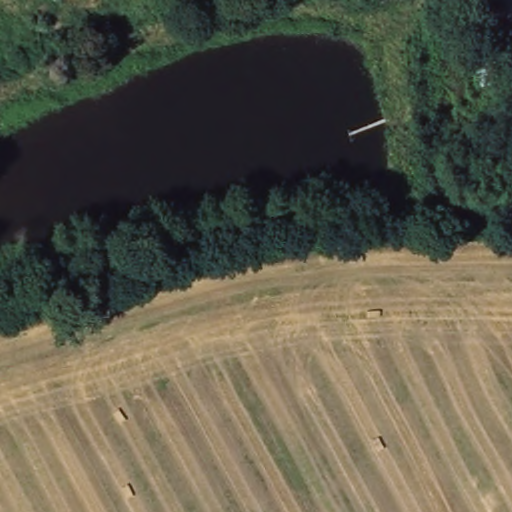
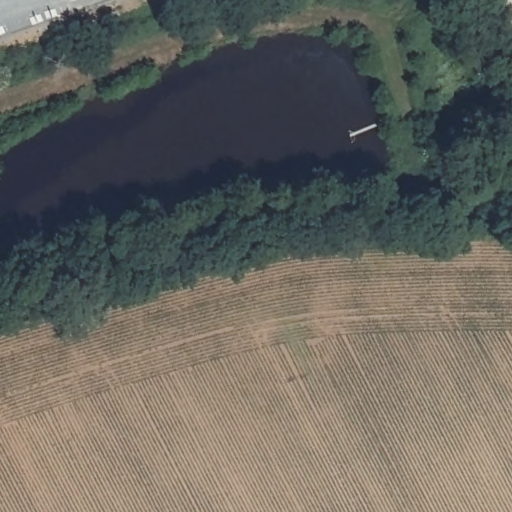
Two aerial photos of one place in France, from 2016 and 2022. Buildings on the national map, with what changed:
unchanged [(494,50),(502,82),(477,89),(471,57),(494,50)]

